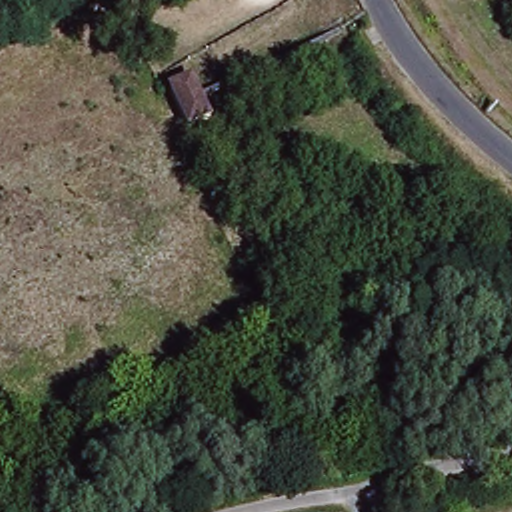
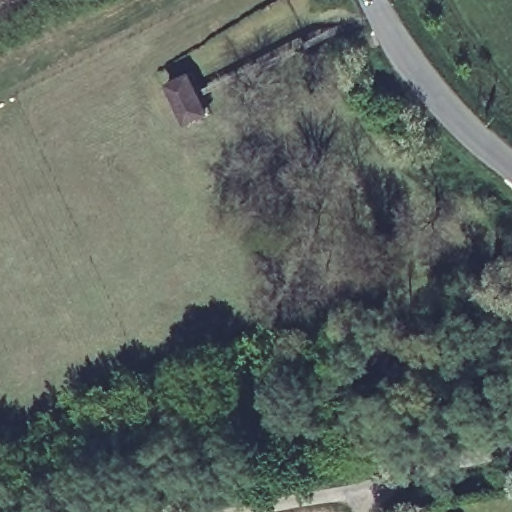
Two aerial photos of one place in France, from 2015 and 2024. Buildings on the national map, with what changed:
unchanged [(173,86),(192,77),(205,111),(187,119),(173,86)]

